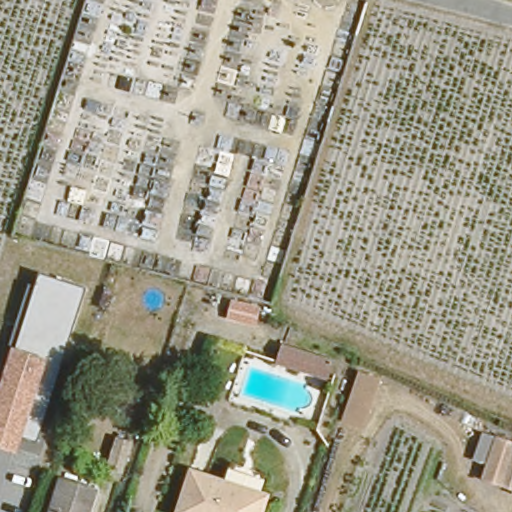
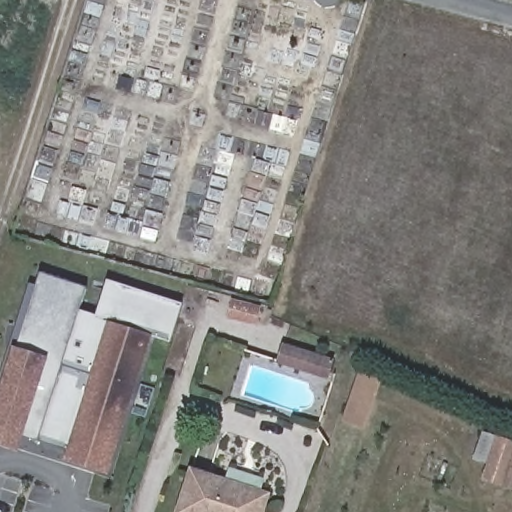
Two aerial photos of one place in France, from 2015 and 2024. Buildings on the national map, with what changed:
unchanged [(0,446),(0,394),(41,275),(85,287),(38,439),(25,435),(20,451),(0,446)]
new [(152,336),(106,322),(66,449),(38,439),(79,310),(95,315),(108,278),(182,303),(170,343),(152,336)]
new [(261,306),(256,327),(226,319),(231,299),(261,306)]
new [(106,475),(62,460),(106,322),(152,336),(106,475)]
unchanged [(283,345),(330,360),(326,375),(279,360),(283,345)]
unchanged [(360,428),(338,422),(352,373),(375,380),(360,428)]
demolished [(121,466),(107,462),(115,436),(129,440),(121,466)]
unchanged [(512,446),(512,473),(472,461),(481,436),(512,446)]
unchanged [(224,475),(227,463),(265,475),(259,487),(268,490),(260,512),(170,512),(187,463),(224,475)]
demolished [(65,472),(76,476),(90,480),(85,497),(93,500),(89,512),(53,512),(65,472)]

